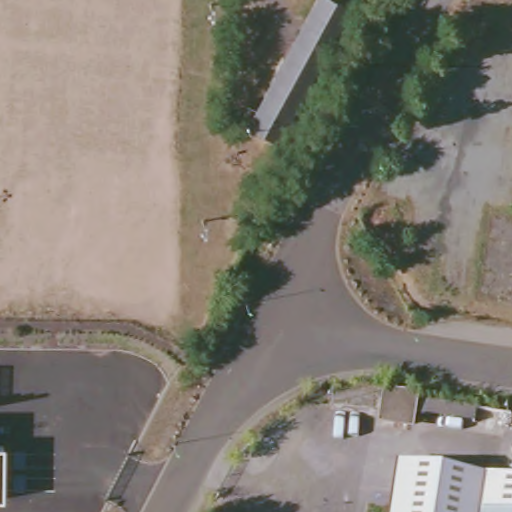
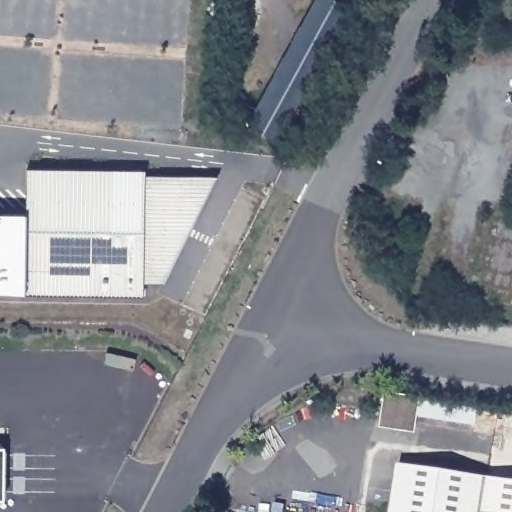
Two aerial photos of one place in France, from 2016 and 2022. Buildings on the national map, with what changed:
unchanged [(350,5),(277,137),(247,121),(314,0),(339,0),(350,5)]
new [(142,295),(23,293),(0,292),(0,214),(25,214),(27,170),(145,170),(144,175),(217,177),(163,282),(142,281),(142,295)]
unchanged [(475,421),(432,415),(412,411),(410,425),(383,421),(387,393),(435,400),(477,407),(475,421)]
new [(0,486),(0,447),(4,447),(0,486)]
unchanged [(512,481),(512,512),(396,512),(403,464),(512,481)]

